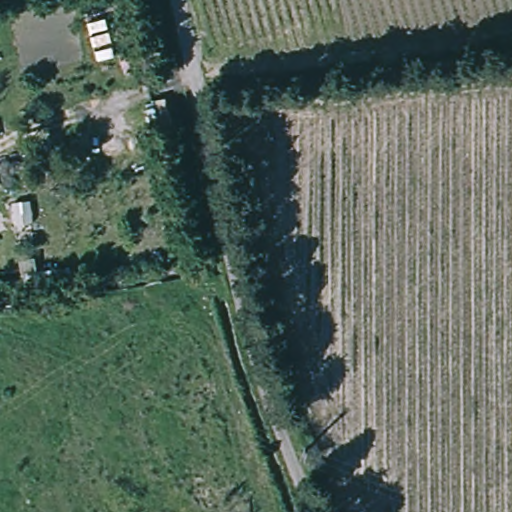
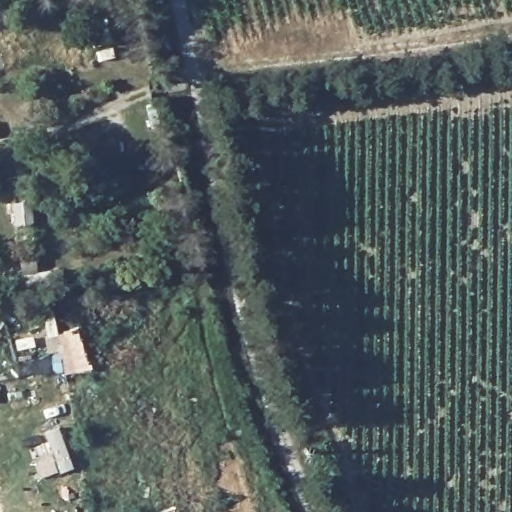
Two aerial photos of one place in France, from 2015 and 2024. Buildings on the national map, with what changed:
new [(65,375),(58,350),(46,353),(43,336),(61,330),(78,327),(88,370),(65,375)]

